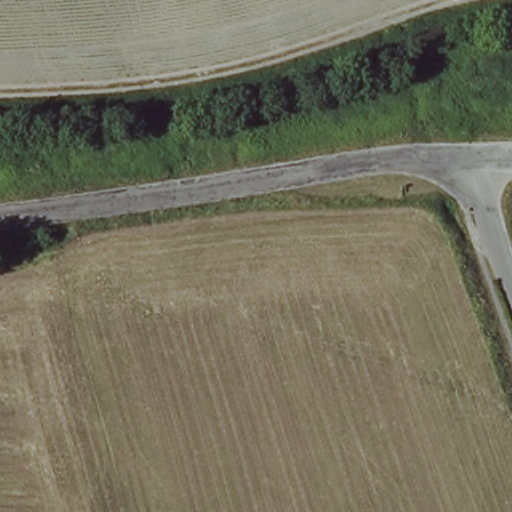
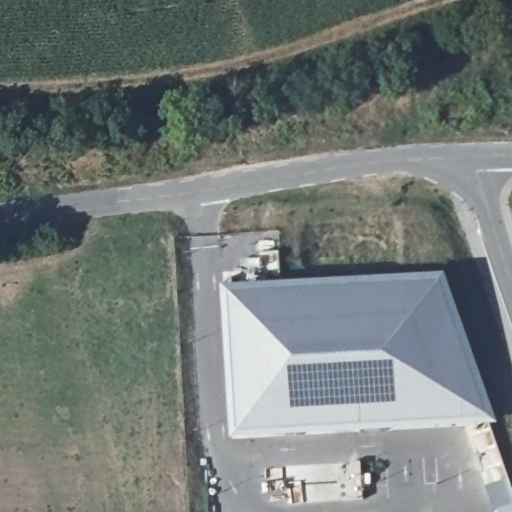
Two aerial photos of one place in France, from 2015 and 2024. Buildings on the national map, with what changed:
new [(445,276),(500,425),(232,440),(224,289),(445,276)]

